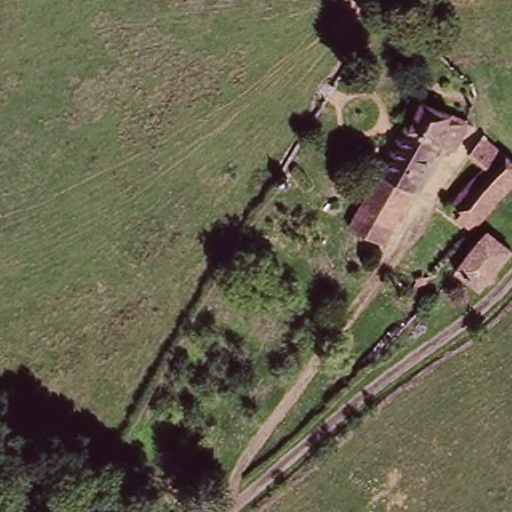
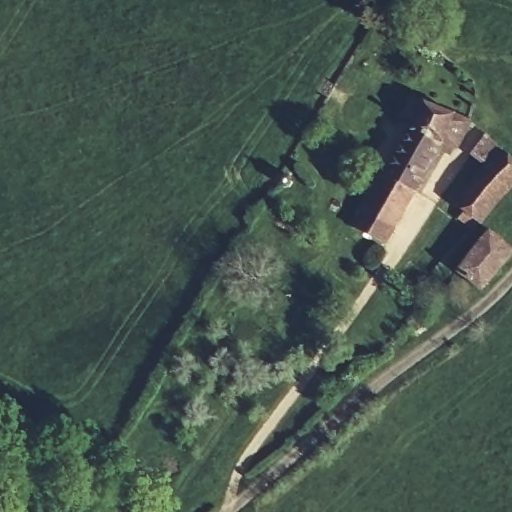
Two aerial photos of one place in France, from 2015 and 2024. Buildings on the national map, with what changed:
unchanged [(466,116),(449,153),(436,146),(381,240),(349,221),(402,130),(407,132),(423,99),(466,116)]
unchanged [(484,170),(468,155),(484,137),(512,161),(512,182),(475,225),(454,205),(484,170)]
unchanged [(510,248),(480,287),(456,269),(485,230),(510,248)]

